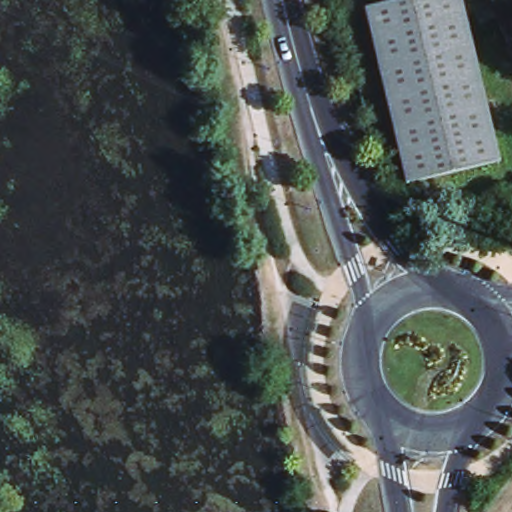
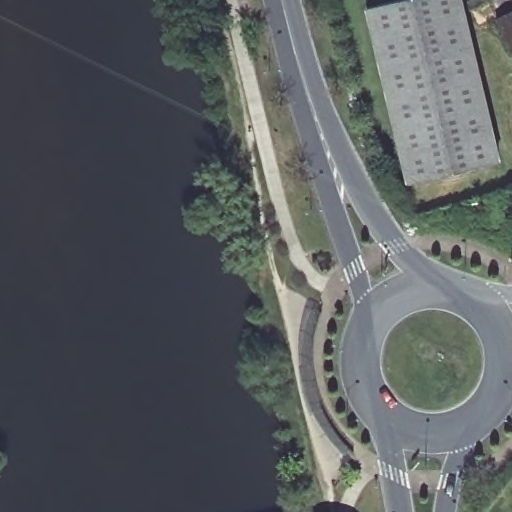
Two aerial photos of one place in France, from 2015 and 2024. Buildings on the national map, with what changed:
unchanged [(496,166),(404,187),(379,83),(363,11),(411,0),(457,0),(476,80),(496,166)]
unchanged [(494,22),(512,13),(512,54),(511,55),(494,22)]

